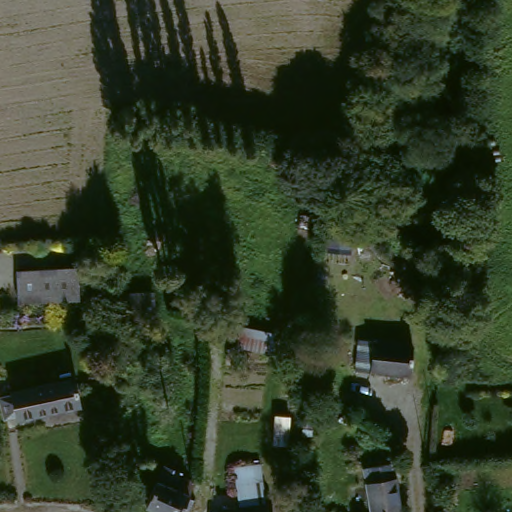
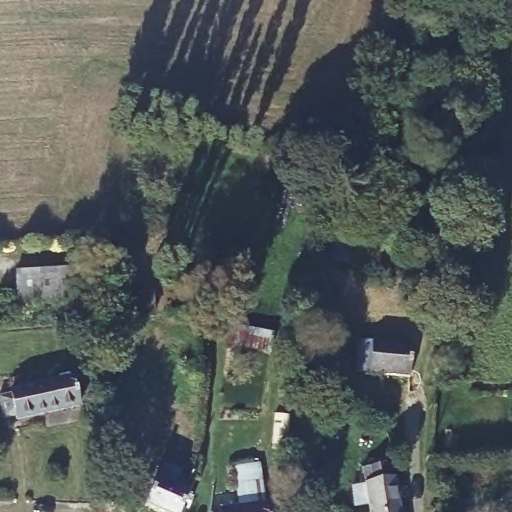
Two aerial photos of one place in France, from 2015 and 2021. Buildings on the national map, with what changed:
unchanged [(6,273),(75,268),(85,267),(89,300),(78,300),(8,304),(6,273)]
unchanged [(156,290),(158,318),(113,320),(113,290),(156,290)]
unchanged [(239,322),(281,329),(279,354),(235,346),(239,322)]
unchanged [(374,375),(359,373),(361,341),(378,342),(416,344),(408,377),(374,375)]
unchanged [(73,407),(2,417),(0,398),(0,388),(71,380),(74,403),(73,407)]
unchanged [(163,512),(148,507),(161,472),(191,481),(178,512),(163,512)]
unchanged [(373,512),(368,477),(398,474),(402,512),(373,512)]
unchanged [(241,506),(239,482),(263,481),(264,500),(271,500),(271,506),(272,512),(204,512),(204,511),(241,506)]

